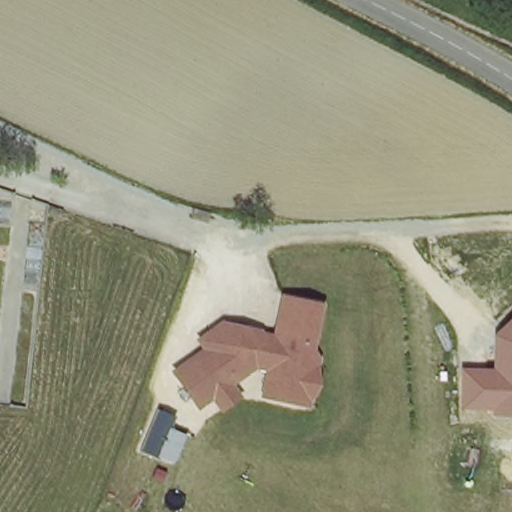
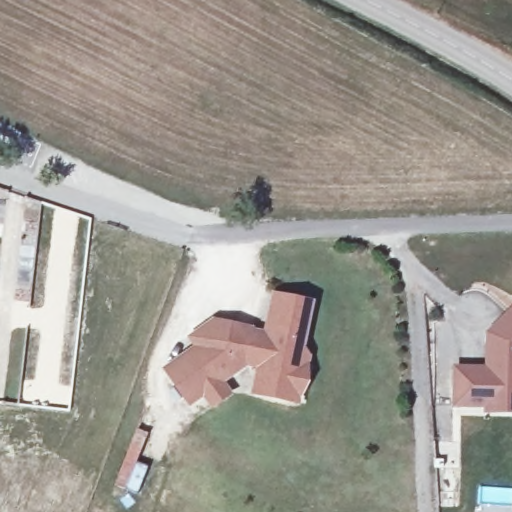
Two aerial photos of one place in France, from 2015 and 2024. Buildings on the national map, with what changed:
unchanged [(312,305),(304,351),(311,357),(301,406),(252,396),(255,373),(243,371),(225,383),(231,399),(212,410),(205,401),(185,411),(164,370),(190,351),(188,338),(209,323),(263,332),(271,299),(312,305)]
unchanged [(488,416),(488,410),(454,409),(455,366),(488,368),(488,333),(512,310),(512,416),(488,416)]

